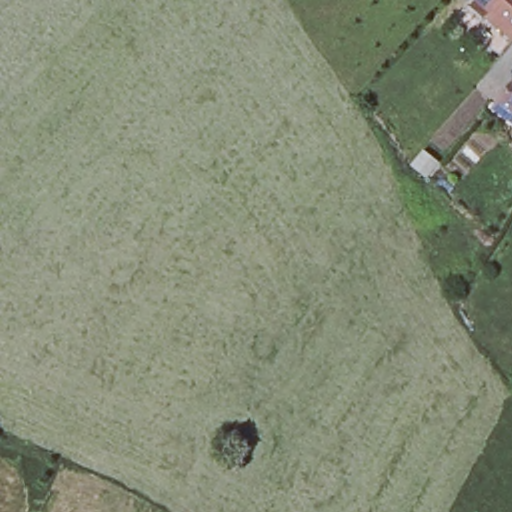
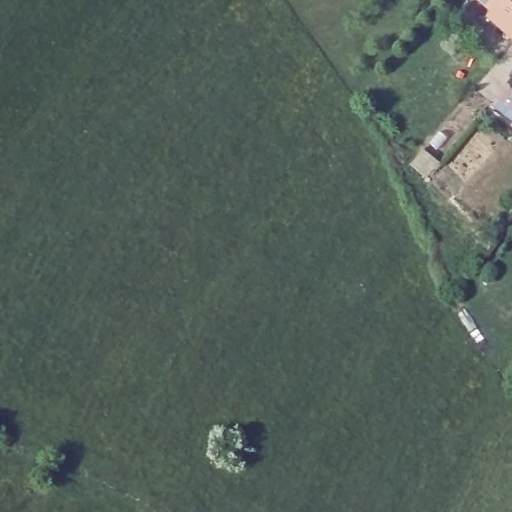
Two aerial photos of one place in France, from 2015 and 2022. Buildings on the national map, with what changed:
unchanged [(488,16),(492,11),(479,0),(512,0),(512,36),(488,16)]
unchanged [(500,107),(512,92),(512,116),(500,107)]

